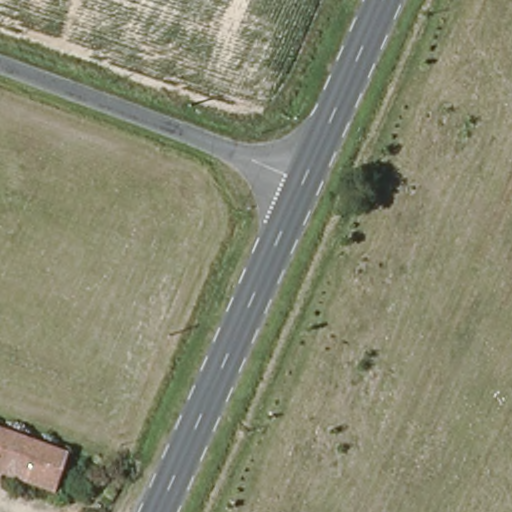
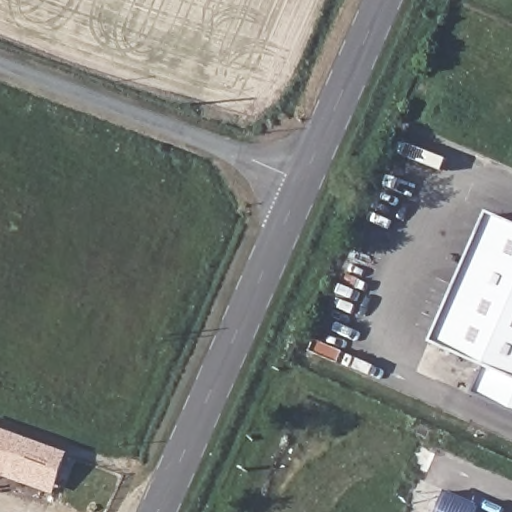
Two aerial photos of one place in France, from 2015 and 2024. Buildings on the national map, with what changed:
new [(474,395),(487,368),(435,346),(492,216),(512,225),(512,412),(474,395)]
unchanged [(0,429),(66,453),(59,478),(56,487),(0,468),(0,429)]

